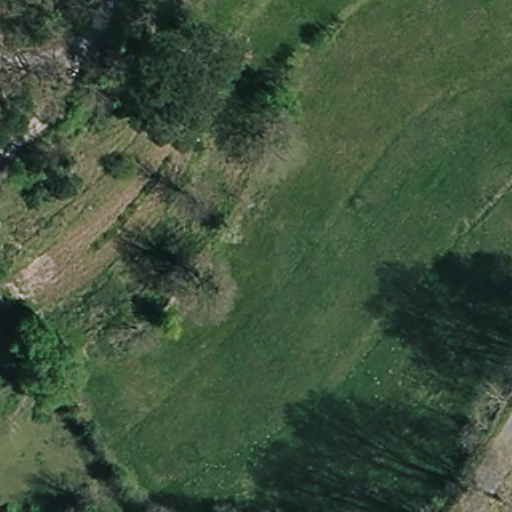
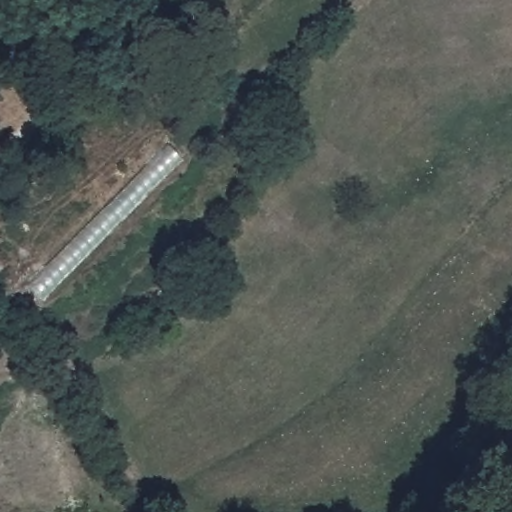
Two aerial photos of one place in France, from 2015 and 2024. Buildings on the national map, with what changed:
new [(168,144),(183,160),(43,301),(27,285),(168,144)]

